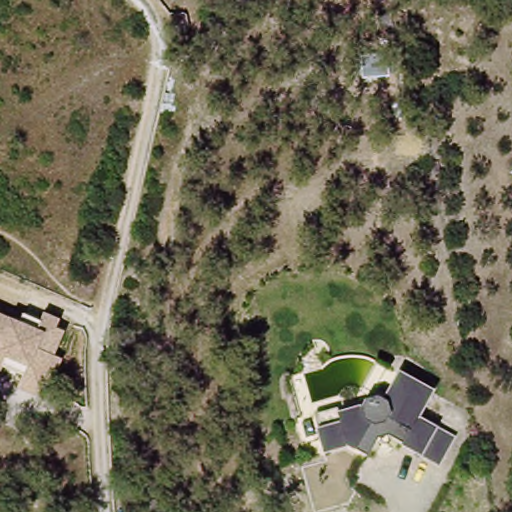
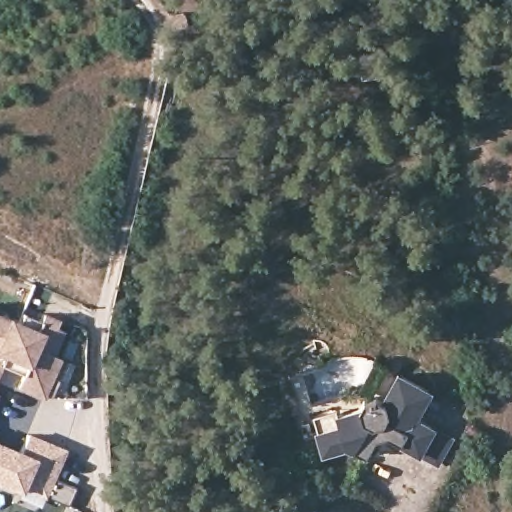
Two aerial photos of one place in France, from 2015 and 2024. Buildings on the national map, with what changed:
unchanged [(0,308),(24,318),(28,308),(46,315),(49,308),(64,314),(61,322),(68,325),(58,349),(66,353),(50,393),(23,382),(27,372),(6,363),(0,376),(0,308)]
unchanged [(375,396),(382,399),(397,374),(429,392),(415,419),(449,439),(435,464),(391,439),(379,441),(370,457),(349,445),(325,450),(321,429),(318,413),(339,409),(341,413),(364,409),(367,399),(375,396)]
new [(29,434),(66,449),(55,478),(78,487),(70,506),(24,486),(22,491),(0,481),(0,444),(21,453),(29,434)]

